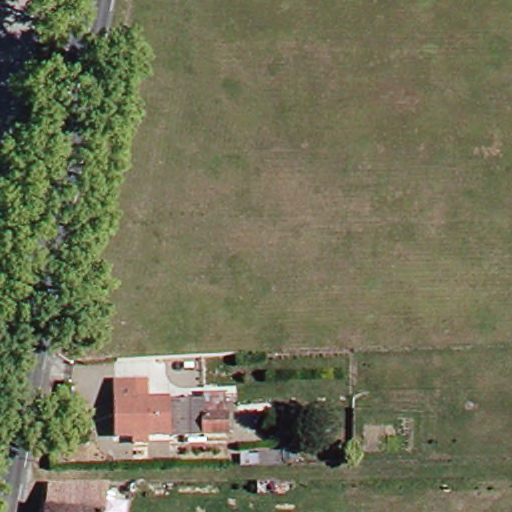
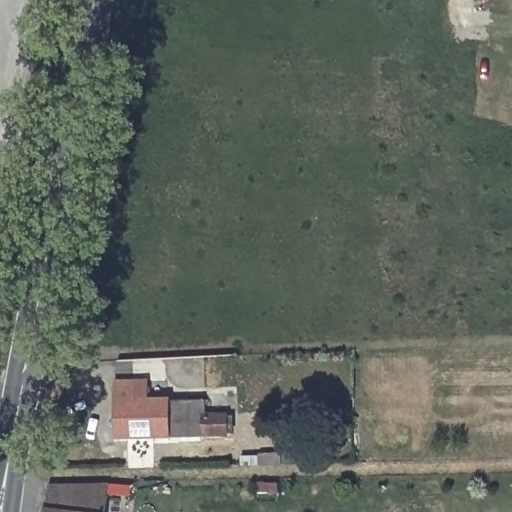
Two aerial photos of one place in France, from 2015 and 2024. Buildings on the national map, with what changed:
unchanged [(130,444),(130,437),(112,437),(111,382),(129,382),(129,401),(161,400),(161,401),(197,400),(197,395),(219,395),(220,436),(143,437),(143,444),(130,444)]
unchanged [(241,464),(241,455),(279,454),(279,452),(293,451),(293,463),(280,463),(260,464),(241,464)]
unchanged [(104,512),(69,512),(73,485),(108,483),(104,512)]
unchanged [(73,485),(69,512),(44,512),(48,486),(73,485)]

